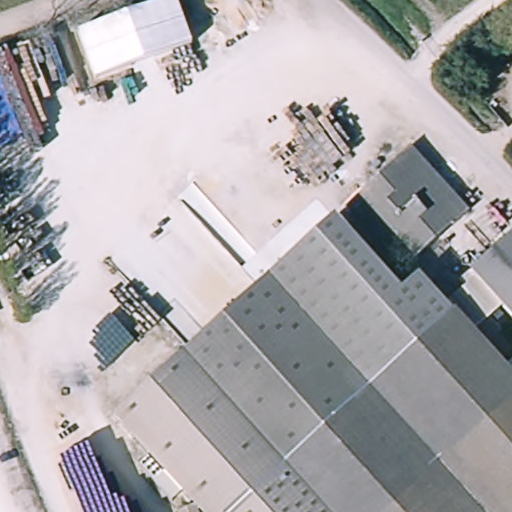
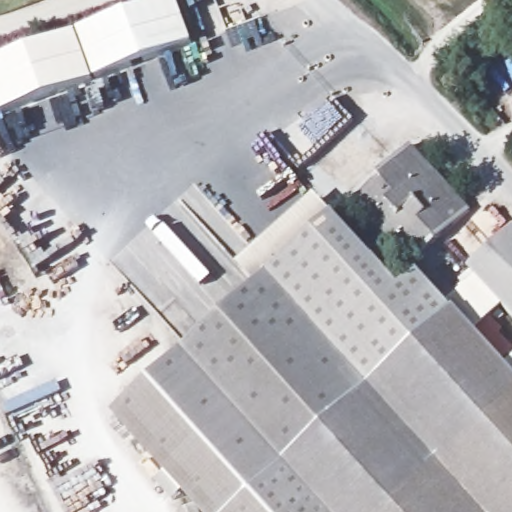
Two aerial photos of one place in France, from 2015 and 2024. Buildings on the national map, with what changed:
unchanged [(176,0),(192,44),(95,80),(78,33),(170,0),(176,0)]
new [(95,80),(0,114),(0,60),(78,33),(95,80)]
unchanged [(342,206),(406,147),(464,212),(402,269),(351,215),(342,206)]
demolished [(460,236),(493,206),(510,225),(477,255),(460,236)]
unchanged [(416,269),(431,286),(440,277),(450,288),(467,273),(494,302),(468,326),(450,306),(281,462),(327,512),(209,512),(129,423),(115,408),(120,404),(334,209),(401,283),(416,269)]
unchanged [(494,302),(467,273),(462,268),(477,255),(510,225),(512,228),(512,323),(494,302)]
unchanged [(281,462),(450,306),(468,326),(475,334),(488,323),(502,338),(488,349),(512,373),(512,512),(327,512),(281,462)]

